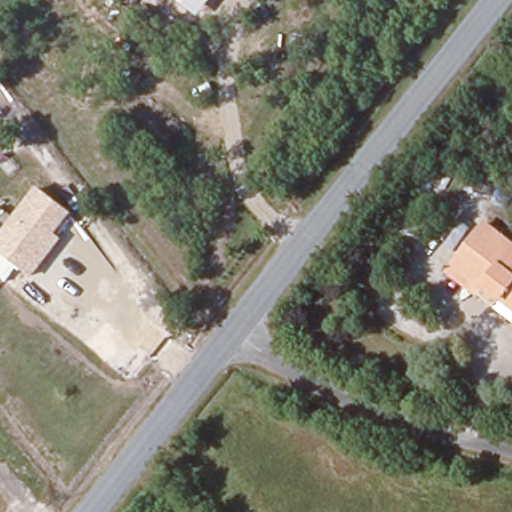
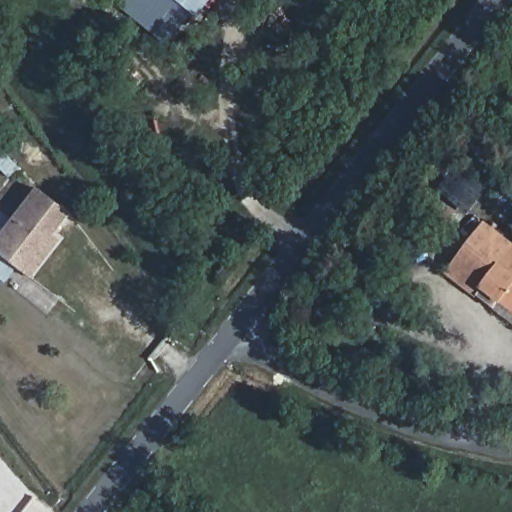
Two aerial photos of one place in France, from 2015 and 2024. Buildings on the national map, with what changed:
new [(170,48),(116,5),(120,0),(177,0),(197,17),(170,48)]
unchanged [(177,0),(212,0),(197,17),(177,0)]
unchanged [(34,277),(0,252),(0,236),(37,188),(72,214),(57,235),(63,240),(34,277)]
unchanged [(492,270),(461,250),(485,220),(512,240),(512,312),(480,286),(492,270)]
unchanged [(461,250),(492,270),(480,286),(512,312),(512,325),(443,273),(461,250)]

